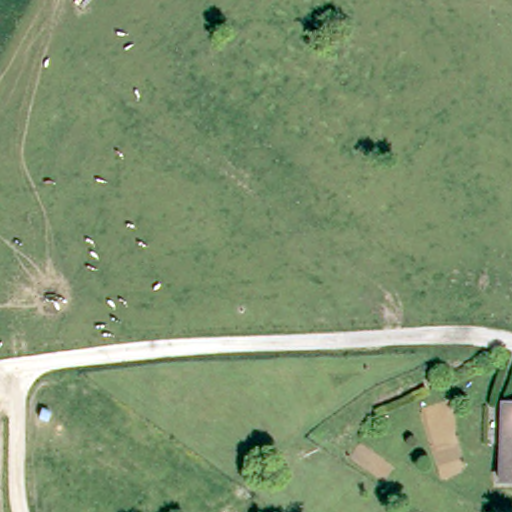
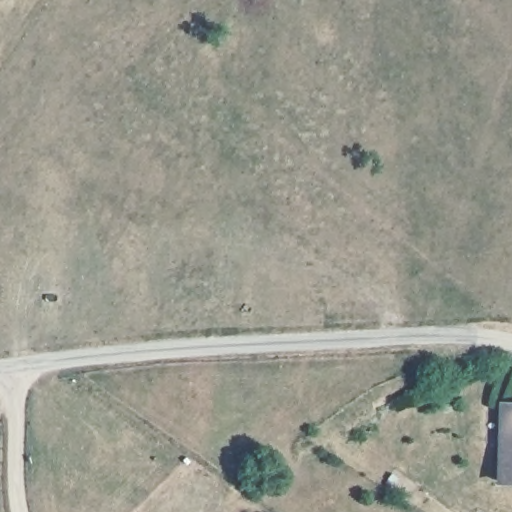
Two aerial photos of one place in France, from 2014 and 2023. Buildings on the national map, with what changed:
unchanged [(508,484),(501,484),(503,406),(512,407),(512,485),(508,484)]

